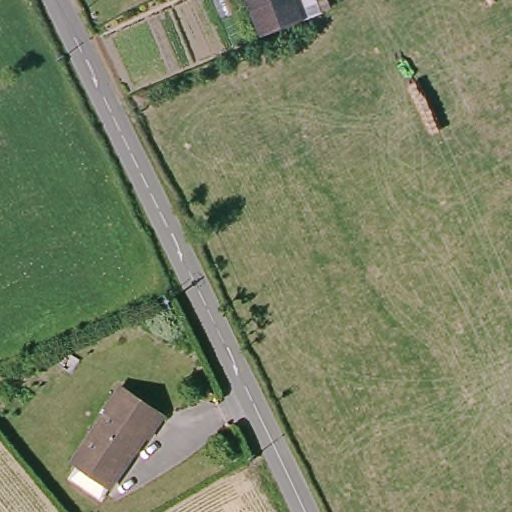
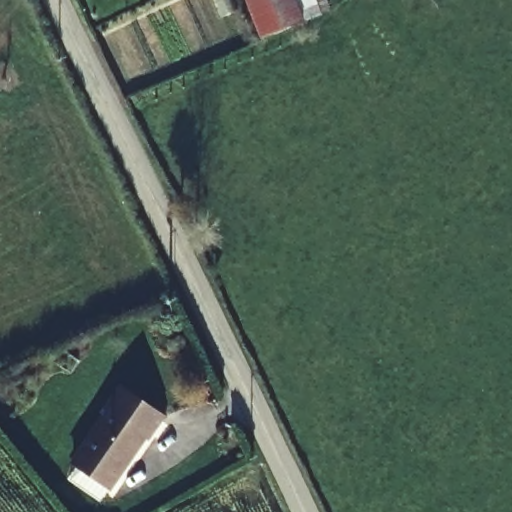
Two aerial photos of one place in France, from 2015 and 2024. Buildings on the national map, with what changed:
unchanged [(307,0),(314,16),(269,35),(255,0),(307,0)]
unchanged [(127,382),(168,413),(151,436),(147,432),(99,496),(69,475),(78,461),(72,457),(127,382)]

